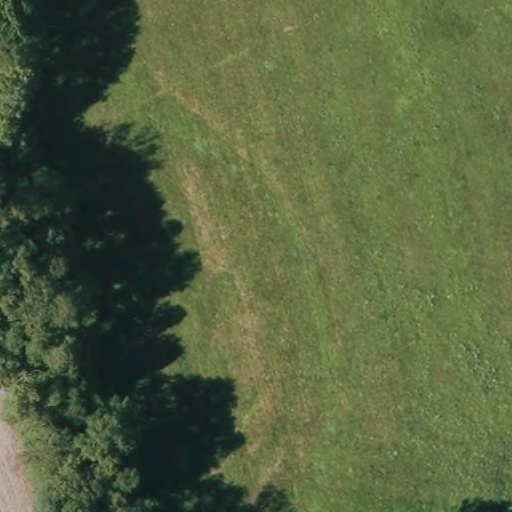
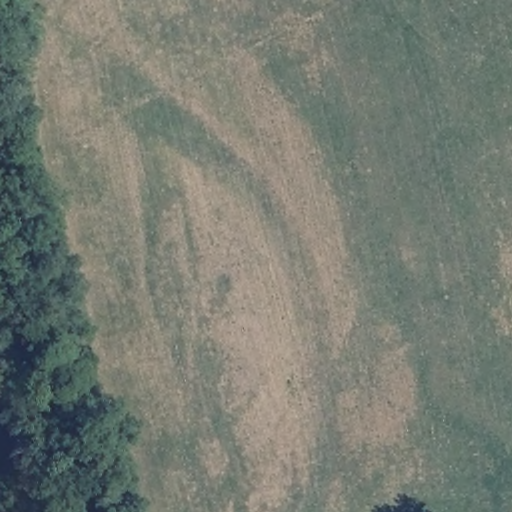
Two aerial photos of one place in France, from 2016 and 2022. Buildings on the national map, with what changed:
[]

